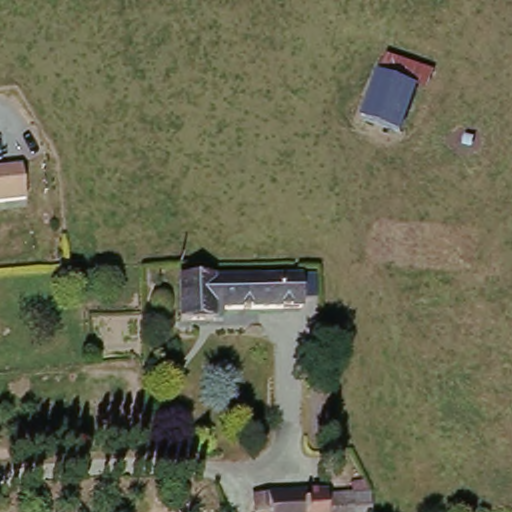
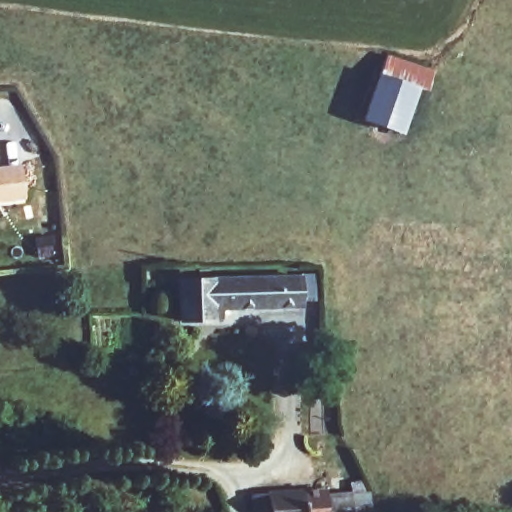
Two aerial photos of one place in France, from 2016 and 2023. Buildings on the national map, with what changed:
unchanged [(361,125),(378,75),(382,76),(387,57),(434,74),(428,93),(420,90),(405,139),(361,125)]
unchanged [(21,169),(24,205),(0,208),(0,169),(21,169)]
unchanged [(182,320),(182,282),(303,277),(304,304),(225,307),(226,321),(182,320)]
unchanged [(272,510),(272,506),(260,506),(258,487),(333,483),(334,487),(357,486),(358,490),(375,490),(377,512),(259,512),(272,510)]

